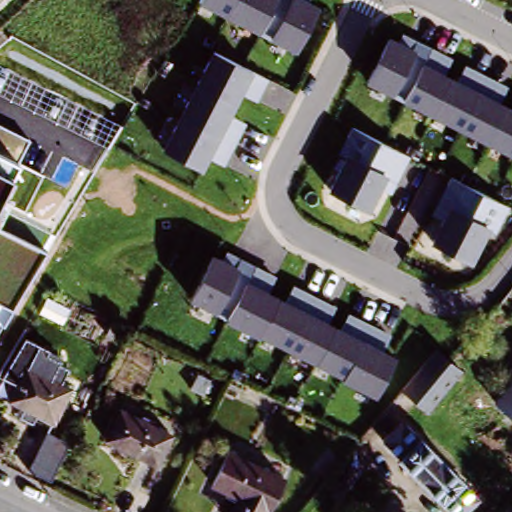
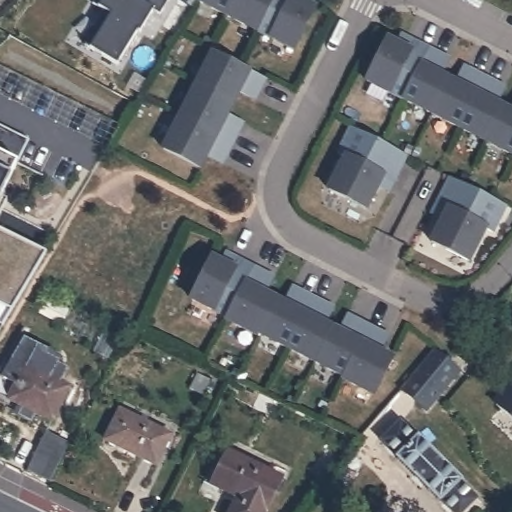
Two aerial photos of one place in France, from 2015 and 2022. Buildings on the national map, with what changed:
new [(158,17),(152,13),(141,32),(139,30),(118,64),(86,45),(107,11),(99,6),(94,3),(96,0),(169,0),(158,17)]
unchanged [(307,2),(319,8),(296,52),(199,2),(200,0),(307,0),(307,2)]
unchanged [(401,31),(452,57),(445,73),(456,79),(464,62),(508,85),(501,101),(512,107),(512,105),(512,156),(367,81),(386,37),(396,41),(401,31)]
unchanged [(267,78),(255,102),(242,96),(231,117),(245,124),(224,165),(210,157),(201,170),(163,149),(214,51),(267,78)]
unchanged [(407,155),(389,191),(382,187),(369,211),(328,189),(345,155),(335,149),(348,124),(407,155)]
unchanged [(29,140),(17,164),(10,177),(0,197),(0,126),(29,140)]
unchanged [(505,205),(493,229),(488,227),(470,262),(429,241),(439,219),(430,215),(448,177),(505,205)]
unchanged [(47,251),(3,325),(0,324),(0,227),(47,251)]
unchanged [(221,259),(226,247),(277,275),(268,292),(284,298),(291,285),(336,307),(329,322),(339,327),(346,312),(391,335),(383,350),(394,356),(376,392),(188,297),(211,253),(221,259)]
unchanged [(121,337),(115,347),(105,342),(110,332),(121,337)]
unchanged [(43,347),(42,351),(61,360),(59,365),(68,369),(62,385),(45,377),(24,367),(8,401),(0,397),(0,375),(4,377),(23,340),(43,347)]
unchanged [(448,353),(462,364),(427,406),(401,385),(436,342),(448,353)]
unchanged [(69,388),(53,422),(8,401),(24,367),(69,388)]
unchanged [(495,400),(512,382),(512,418),(495,400)]
unchanged [(165,437),(150,466),(100,442),(115,412),(165,437)]
unchanged [(420,437),(458,476),(456,478),(473,496),(455,512),(451,512),(437,497),(434,500),(395,460),(397,458),(381,442),(401,423),(417,440),(420,437)]
unchanged [(47,432),(69,442),(51,481),(29,469),(47,432)]
unchanged [(211,485),(226,453),(281,480),(266,512),(228,512),(235,497),(211,485)]

